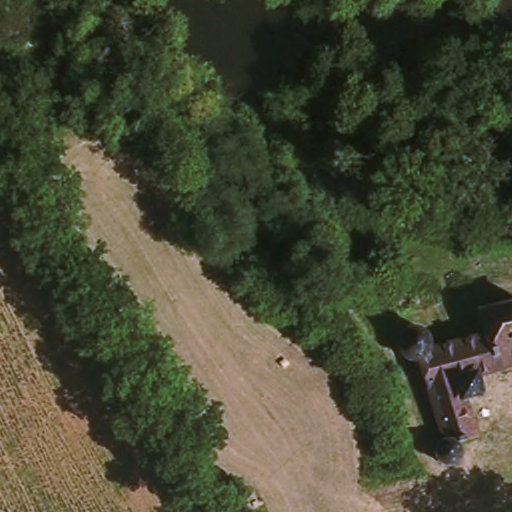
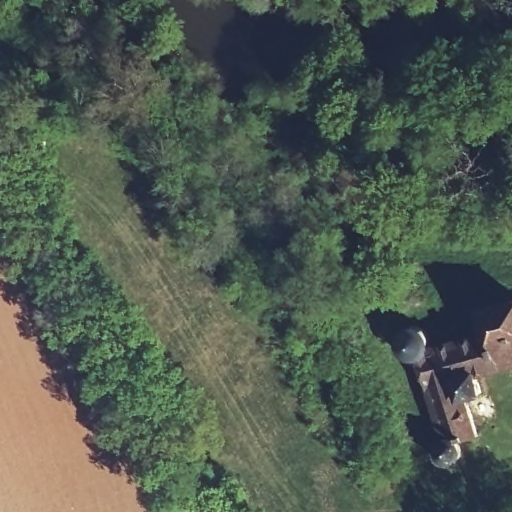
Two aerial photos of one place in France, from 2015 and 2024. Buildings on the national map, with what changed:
unchanged [(477,319),(474,309),(512,299),(512,366),(477,374),(482,392),(468,396),(479,437),(459,442),(460,447),(459,453),(455,461),(444,465),(434,463),(428,457),(427,446),(429,438),(436,433),(414,343),(401,342),(393,335),(391,327),(394,319),(404,313),(415,313),(422,320),(423,333),(477,319)]

